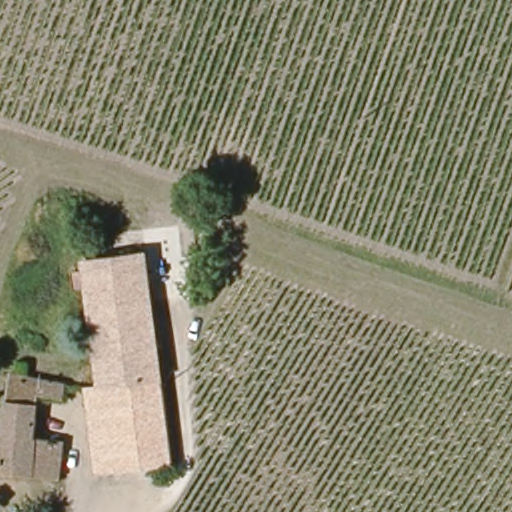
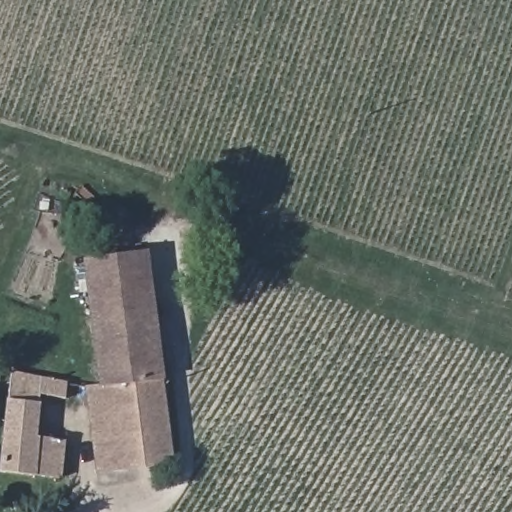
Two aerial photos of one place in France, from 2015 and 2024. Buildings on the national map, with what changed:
unchanged [(94,468),(89,395),(101,394),(93,264),(151,261),(165,462),(94,468)]
unchanged [(41,401),(37,427),(62,432),(55,480),(0,473),(0,447),(8,376),(69,393),(67,405),(41,401)]

